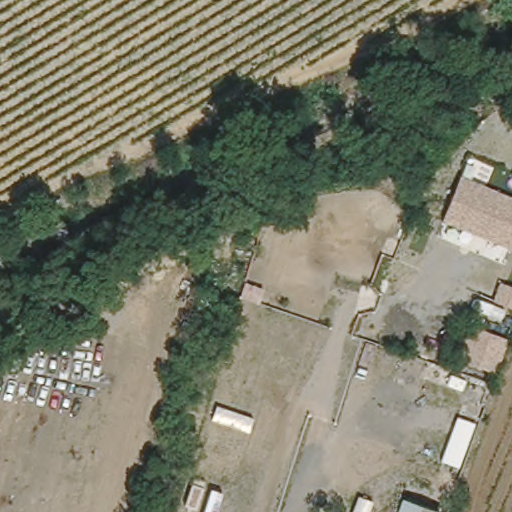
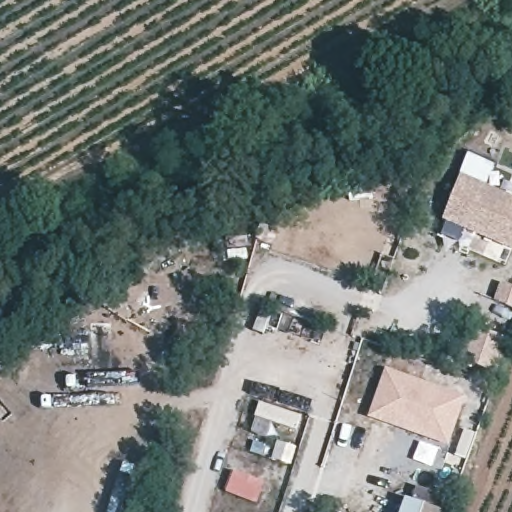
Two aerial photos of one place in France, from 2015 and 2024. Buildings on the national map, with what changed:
unchanged [(510,251),(439,225),(454,181),(512,202),(512,245),(510,251)]
unchanged [(501,370),(462,356),(475,326),(512,340),(512,342),(501,370)]
new [(465,397),(449,447),(369,417),(386,369),(465,397)]
new [(191,470),(195,456),(201,458),(209,437),(207,436),(211,423),(249,435),(244,450),(240,448),(234,468),(213,461),(207,475),(191,470)]
unchanged [(409,512),(413,500),(444,512),(409,512)]

